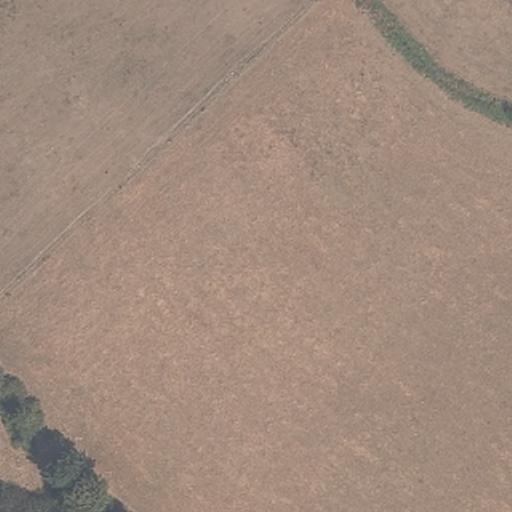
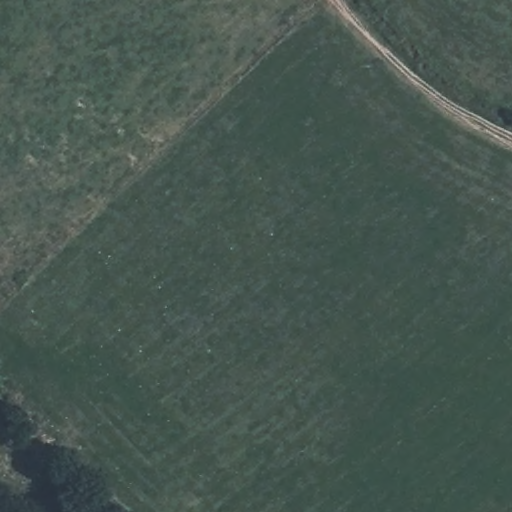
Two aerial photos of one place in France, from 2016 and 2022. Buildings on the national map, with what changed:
[]

